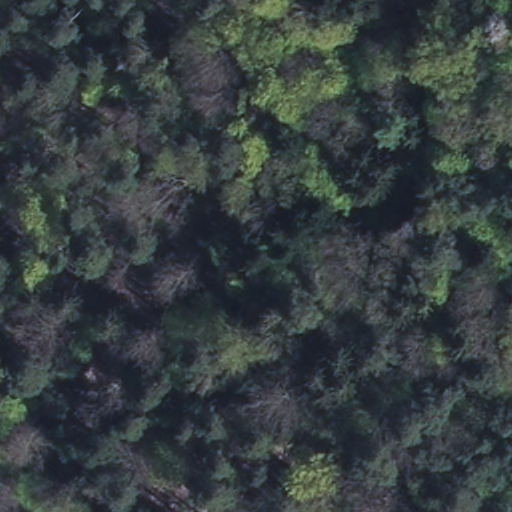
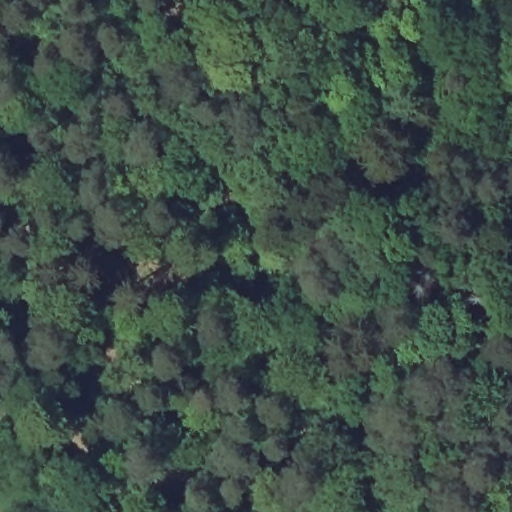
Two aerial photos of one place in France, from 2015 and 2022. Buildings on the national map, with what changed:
[]

